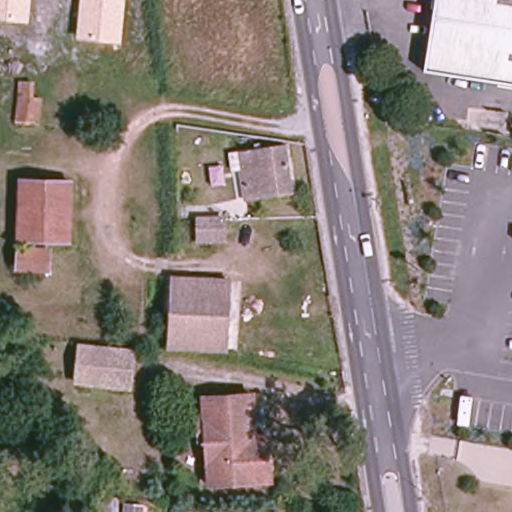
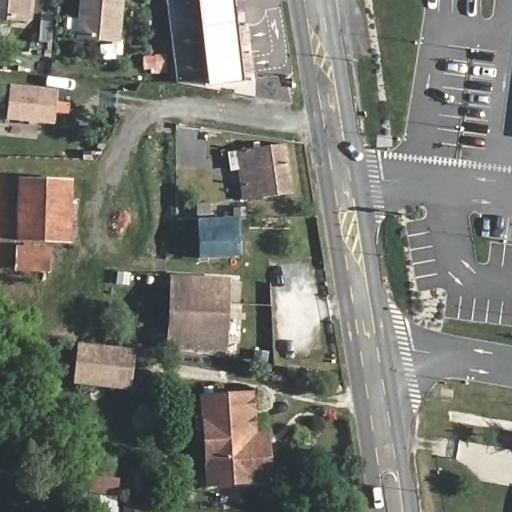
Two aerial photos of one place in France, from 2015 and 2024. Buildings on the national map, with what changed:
unchanged [(0,20),(0,0),(29,0),(27,22),(0,20)]
unchanged [(75,40),(79,0),(125,0),(120,45),(75,40)]
new [(240,0),(251,81),(219,86),(206,0),(240,0)]
demolished [(431,0),(512,0),(512,85),(422,75),(431,0)]
unchanged [(15,118),(19,81),(31,83),(30,97),(42,99),(38,120),(15,118)]
unchanged [(290,192),(245,197),(239,148),(282,141),(290,192)]
unchanged [(20,175),(71,181),(66,242),(15,238),(20,175)]
unchanged [(224,237),(199,242),(196,227),(181,229),(179,220),(220,215),(224,237)]
unchanged [(14,269),(15,248),(45,251),(45,272),(14,269)]
unchanged [(221,345),(170,345),(174,283),(224,286),(221,345)]
unchanged [(95,383),(70,381),(71,343),(116,347),(126,347),(125,371),(125,387),(95,383)]
unchanged [(248,451),(263,450),(268,469),(263,472),(265,480),(214,485),(209,466),(204,466),(200,440),(194,439),(193,418),(198,417),(197,398),(242,393),(248,451)]
unchanged [(95,498),(116,497),(117,512),(96,512),(95,498)]

